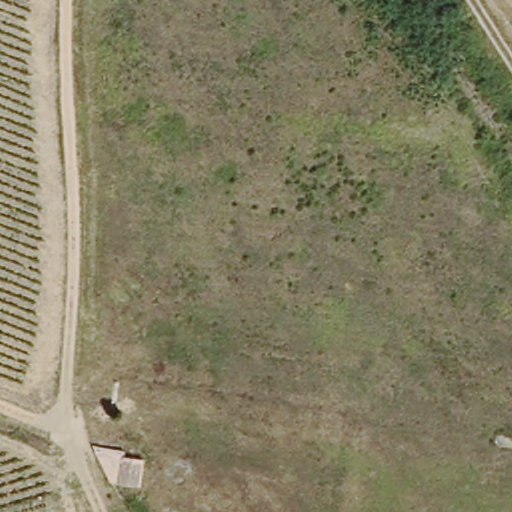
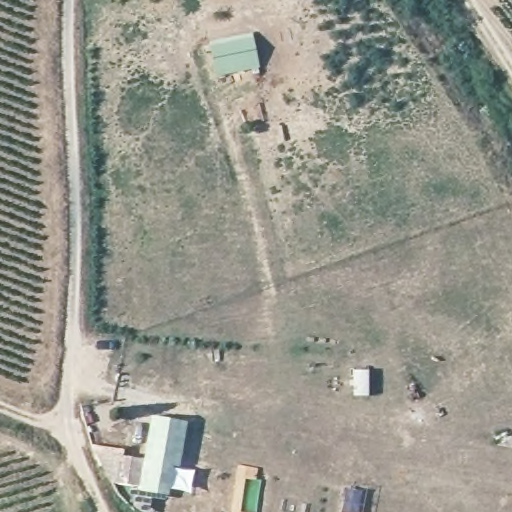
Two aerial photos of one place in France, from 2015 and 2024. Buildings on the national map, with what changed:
new [(260,68),(216,77),(209,41),(253,32),(259,59),(260,68)]
new [(150,415),(185,421),(178,466),(143,458),(150,415)]
unchanged [(117,464),(136,468),(133,495),(109,492),(94,455),(117,457),(117,464)]

